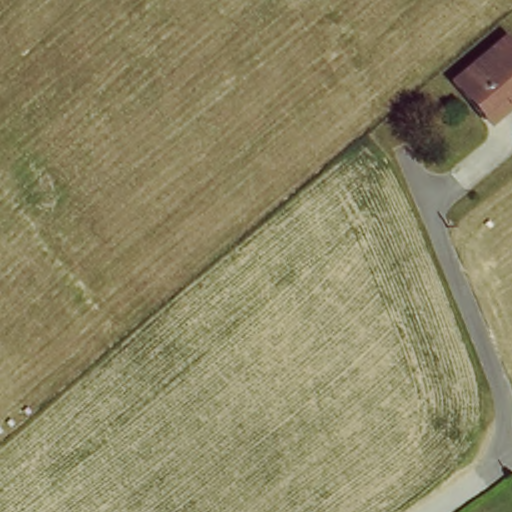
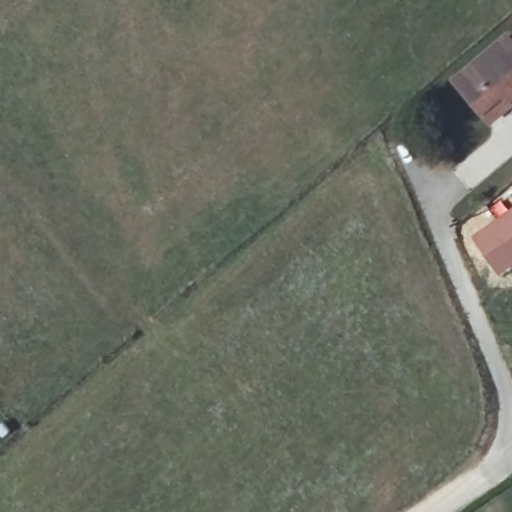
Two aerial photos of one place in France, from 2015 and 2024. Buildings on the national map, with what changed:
unchanged [(491,121),(460,85),(512,41),(512,103),(491,121)]
new [(512,205),(512,266),(499,276),(470,234),(512,205)]

